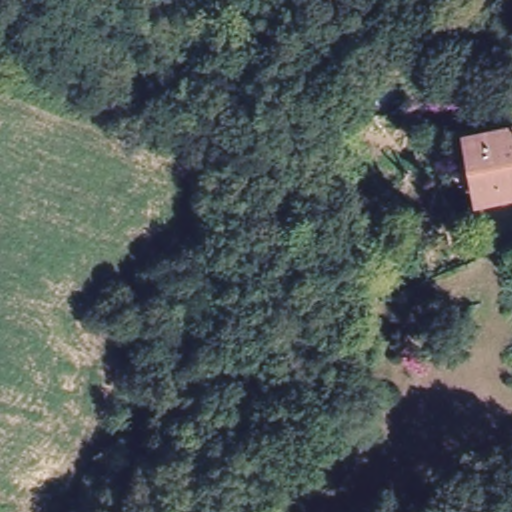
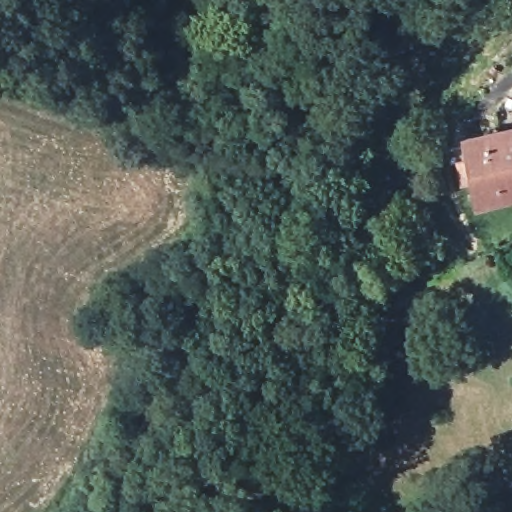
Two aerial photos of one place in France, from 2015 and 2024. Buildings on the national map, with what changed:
unchanged [(461,132),(512,126),(512,188),(470,192),(461,132)]

